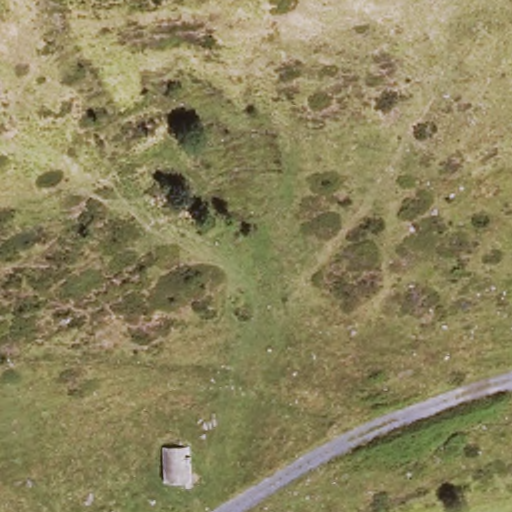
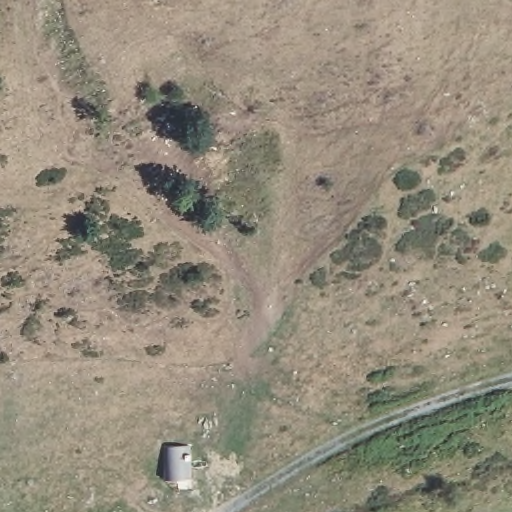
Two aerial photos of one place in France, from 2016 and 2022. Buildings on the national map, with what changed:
unchanged [(193,436),(192,460),(192,472),(164,471),(160,437),(193,436)]

